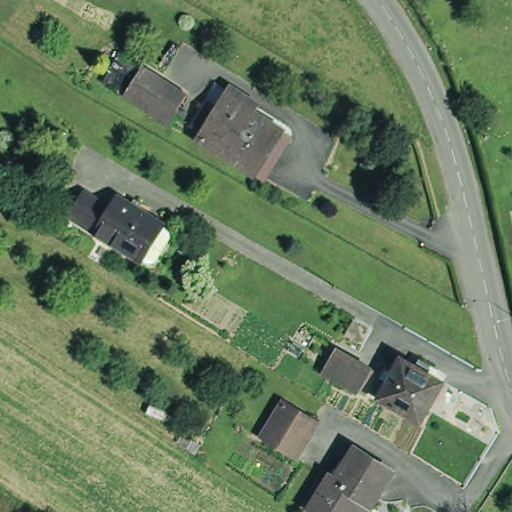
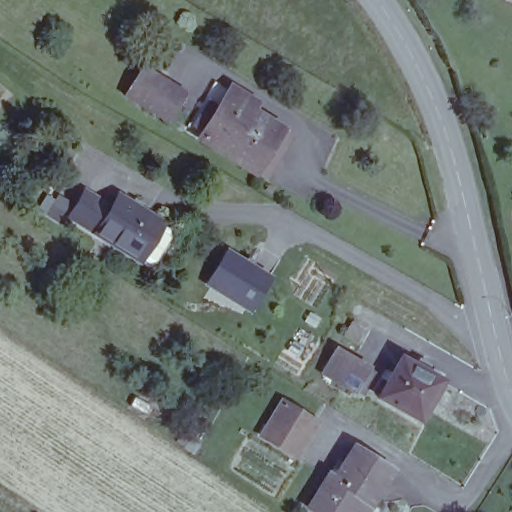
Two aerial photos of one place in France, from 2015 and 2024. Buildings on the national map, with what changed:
unchanged [(122,58),(166,86),(150,113),(105,85),(122,58)]
unchanged [(227,90),(244,101),(240,108),(275,130),(250,170),(198,137),(227,90)]
unchanged [(150,251),(146,256),(140,257),(133,254),(132,255),(127,252),(87,227),(60,211),(67,200),(76,186),(102,202),(109,191),(150,216),(155,219),(154,220),(160,224),(162,231),(150,251)]
new [(275,277),(254,315),(207,286),(230,249),(275,277)]
unchanged [(325,364),(331,353),(365,373),(359,385),(352,397),(317,377),(325,364)]
unchanged [(417,421),(415,426),(374,402),(375,400),(368,396),(370,392),(375,384),(382,388),(397,363),(410,371),(415,363),(425,369),(422,377),(437,386),(417,421)]
unchanged [(304,440),(295,455),(264,435),(273,421),(285,403),(315,422),(304,440)]
unchanged [(330,476),(334,468),(340,472),(344,465),(355,447),(392,470),(381,489),(371,504),(366,512),(316,512),(309,508),(330,476)]

